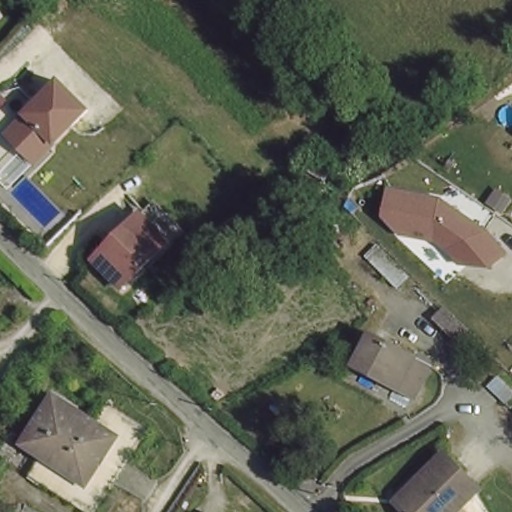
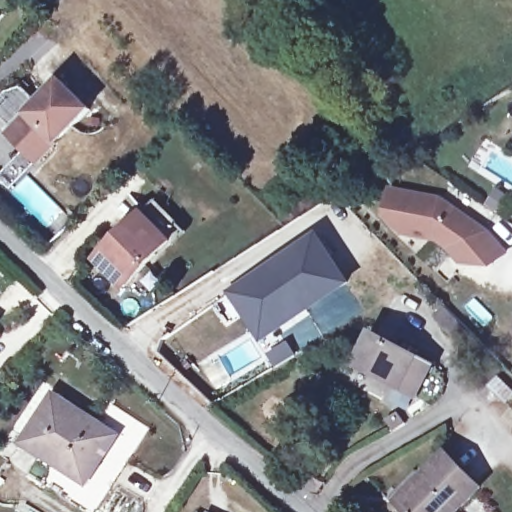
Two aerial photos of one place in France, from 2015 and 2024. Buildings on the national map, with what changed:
unchanged [(51,137),(32,157),(1,128),(21,108),(57,72),(85,101),(51,137)]
unchanged [(492,269),(459,266),(449,252),(435,243),(401,236),(384,218),(389,187),(442,197),(492,230),(511,255),(492,269)]
unchanged [(141,200),(169,228),(158,240),(157,240),(112,286),(82,258),(129,212),(141,200)]
new [(320,233),(351,284),(256,343),(225,293),(320,233)]
unchanged [(431,369),(411,399),(372,373),(355,362),(362,352),(376,332),(431,369)]
unchanged [(85,477),(24,436),(55,389),(116,431),(85,477)]
unchanged [(480,490),(457,512),(455,512),(450,508),(447,512),(405,512),(394,501),(446,454),(480,490)]

